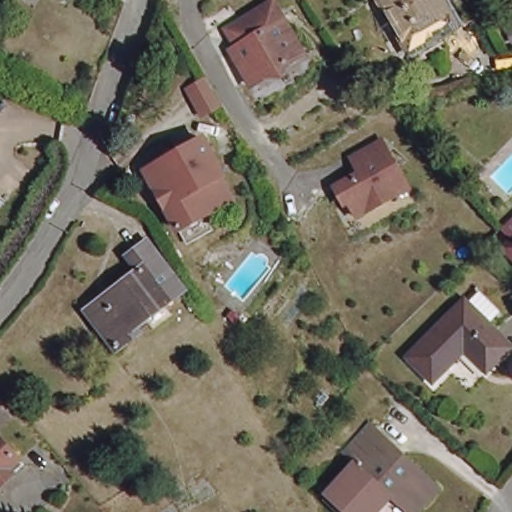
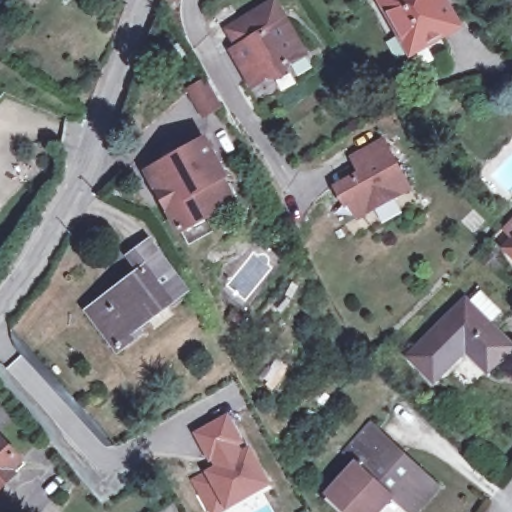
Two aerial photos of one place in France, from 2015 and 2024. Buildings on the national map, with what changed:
unchanged [(250,74),(232,45),(238,42),(227,24),(266,0),(276,0),(297,33),(307,49),(290,59),(286,73),(272,70),(265,74),(254,80),(252,76),(250,74)]
unchanged [(432,0),(447,26),(400,52),(369,0),(432,0)]
unchanged [(503,0),(512,0),(512,10),(505,7),(503,0)]
unchanged [(207,80),(222,106),(205,115),(190,89),(207,80)]
unchanged [(184,239),(177,227),(143,166),(200,134),(220,172),(217,174),(230,197),(199,214),(205,226),(184,239)]
unchanged [(355,173),(347,158),(378,140),(405,189),(353,218),(335,184),(355,173)]
unchanged [(512,221),(512,247),(499,234),(512,221)]
unchanged [(126,257),(146,242),(182,289),(133,326),(137,332),(114,349),(84,310),(137,271),(126,257)]
unchanged [(512,250),(512,260),(507,255),(512,250)]
unchanged [(460,351),(427,383),(404,359),(459,303),(461,304),(470,295),(489,314),(480,324),(505,349),(485,369),(482,373),(460,351)]
new [(205,471),(215,466),(212,461),(209,462),(193,434),(229,413),(246,443),(241,446),(243,449),(251,444),(274,484),(227,509),(222,512),(210,512),(191,479),(205,471)]
unchanged [(373,512),(342,512),(322,494),(350,463),(340,452),(364,424),(389,447),(385,451),(395,459),(398,456),(433,488),(411,512),(403,512),(387,497),(377,507),(373,512)]
unchanged [(21,456),(0,476),(0,434),(21,456)]

